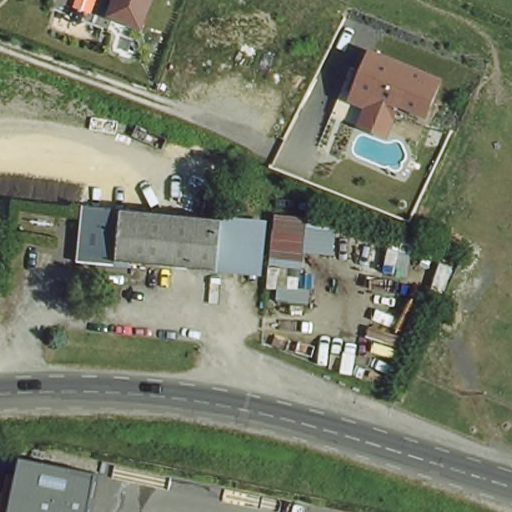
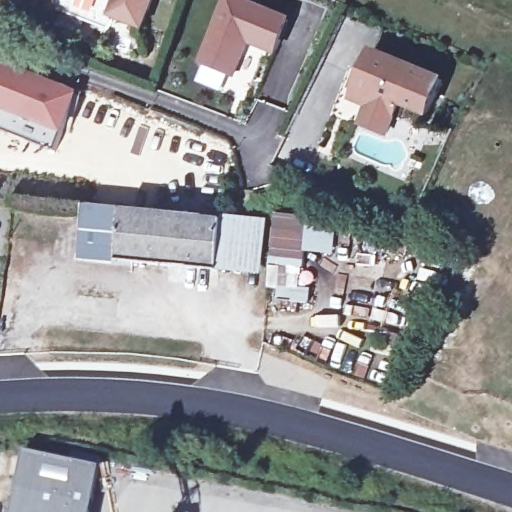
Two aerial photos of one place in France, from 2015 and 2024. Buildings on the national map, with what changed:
unchanged [(114,14),(119,0),(151,0),(141,25),(114,14)]
new [(199,66),(225,0),(248,0),(293,19),(274,59),(247,46),(234,81),(199,66)]
unchanged [(430,119),(403,108),(391,139),(359,126),(366,109),(351,102),(373,49),(446,79),(430,119)]
new [(0,132),(0,61),(80,92),(63,135),(56,132),(53,153),(0,132)]
unchanged [(233,221),(229,277),(83,263),(87,209),(233,221)]
unchanged [(336,255),(307,252),(306,269),(272,266),(278,214),(311,217),(312,215),(340,218),(336,255)]
unchanged [(271,223),(267,282),(229,277),(233,221),(271,223)]
unchanged [(92,512),(13,512),(24,459),(100,476),(92,512)]

